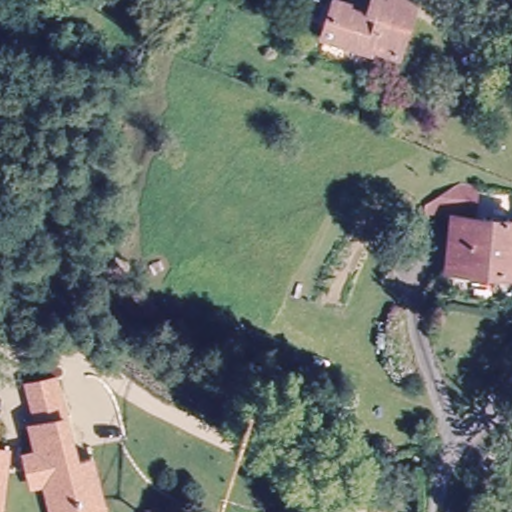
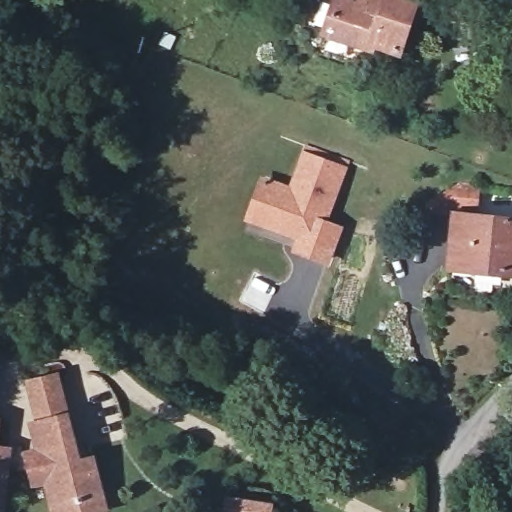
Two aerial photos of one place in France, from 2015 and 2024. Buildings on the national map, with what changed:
unchanged [(397,51),(372,42),(370,50),(324,34),(334,0),(350,0),(367,6),(369,0),(413,0),(397,51)]
new [(291,251),(294,239),(243,222),(259,175),(289,185),(301,150),(347,166),(329,221),(345,226),(331,265),(291,251)]
unchanged [(423,217),(424,209),(458,190),(476,191),(473,222),(454,220),(423,217)]
unchanged [(449,272),(454,220),(473,222),(512,225),(512,277),(508,276),(449,272)]
unchanged [(115,262),(157,305),(147,315),(104,271),(115,262)]
unchanged [(39,415),(31,382),(58,375),(67,408),(39,415)]
unchanged [(38,482),(33,464),(30,452),(40,450),(34,424),(67,415),(79,462),(94,458),(106,507),(86,512),(56,512),(48,480),(38,482)]
unchanged [(9,451),(7,463),(2,512),(0,512),(0,450),(9,451)]
unchanged [(275,503),(274,512),(223,512),(225,495),(275,503)]

